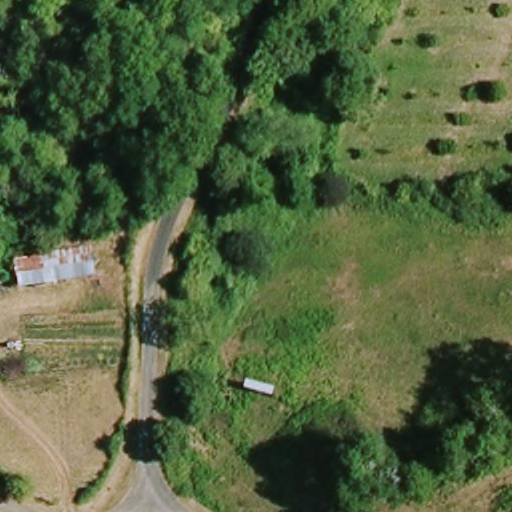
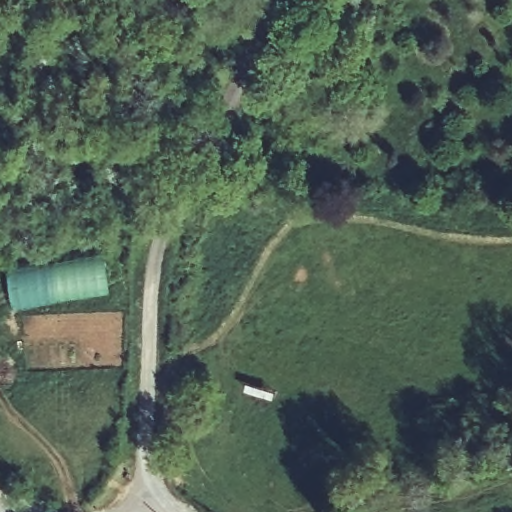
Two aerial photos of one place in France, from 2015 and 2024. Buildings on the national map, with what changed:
new [(15,312),(6,264),(101,247),(111,293),(15,312)]

